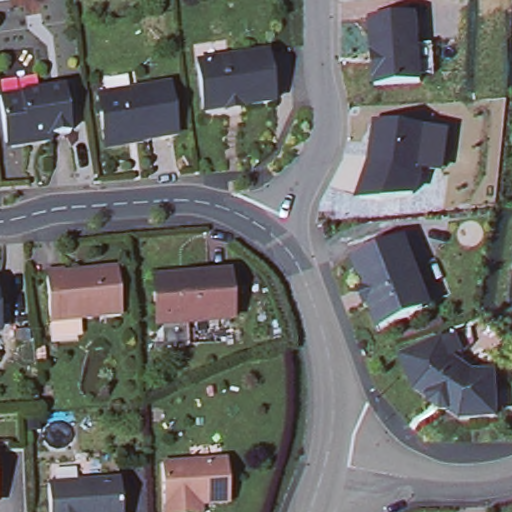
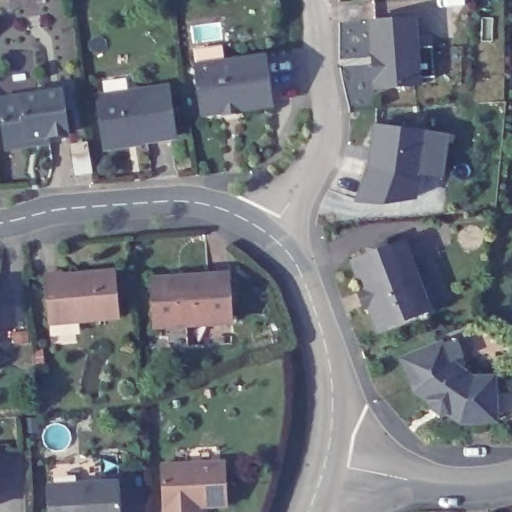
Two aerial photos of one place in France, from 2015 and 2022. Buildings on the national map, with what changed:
unchanged [(423,89),(374,94),(368,23),(416,18),(423,89)]
unchanged [(262,59),(268,108),(235,111),(236,114),(220,116),(219,113),(197,115),(192,67),(262,59)]
unchanged [(109,136),(103,94),(171,84),(178,134),(141,139),(110,144),(109,136)]
unchanged [(64,88),(70,133),(30,139),(23,147),(13,148),(6,143),(0,96),(64,88)]
unchanged [(414,196),(383,201),(358,199),(371,164),(376,124),(429,130),(448,134),(443,174),(423,171),(422,181),(414,196)]
unchanged [(366,254),(365,249),(382,243),(384,248),(402,241),(429,313),(376,334),(349,261),(366,254)]
unchanged [(64,274),(64,279),(118,274),(121,320),(51,325),(48,275),(64,274)]
unchanged [(228,324),(153,329),(151,289),(150,283),(181,280),(225,278),(228,324)]
unchanged [(491,379),(493,422),(457,423),(446,415),(439,416),(428,408),(426,401),(413,392),(400,361),(441,344),(452,339),(461,359),(449,364),(470,380),(491,379)]
unchanged [(223,465),(224,503),(197,504),(197,512),(161,512),(159,468),(223,465)]
unchanged [(121,479),(123,512),(52,512),(50,483),(121,479)]

